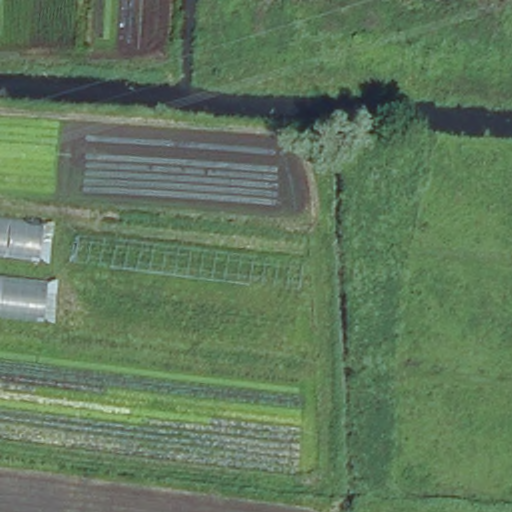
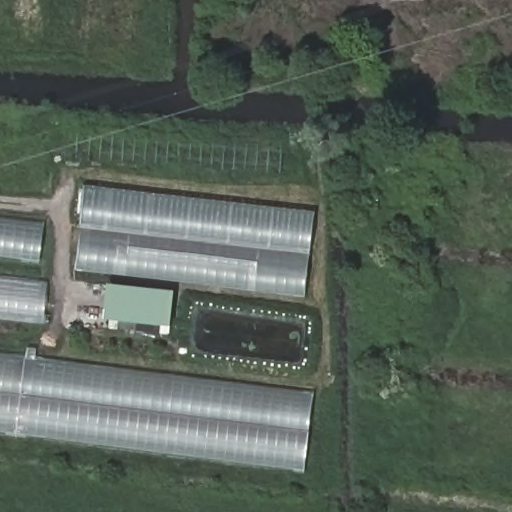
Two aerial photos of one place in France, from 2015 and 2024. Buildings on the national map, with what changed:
new [(304,296),(74,269),(84,185),(314,212),(304,296)]
unchanged [(0,259),(0,217),(56,224),(48,265),(0,259)]
unchanged [(50,323),(0,317),(0,277),(58,284),(51,324),(50,323)]
new [(108,327),(109,319),(102,318),(106,282),(174,290),(169,334),(108,327)]
new [(0,433),(0,352),(314,391),(304,471),(0,433)]

